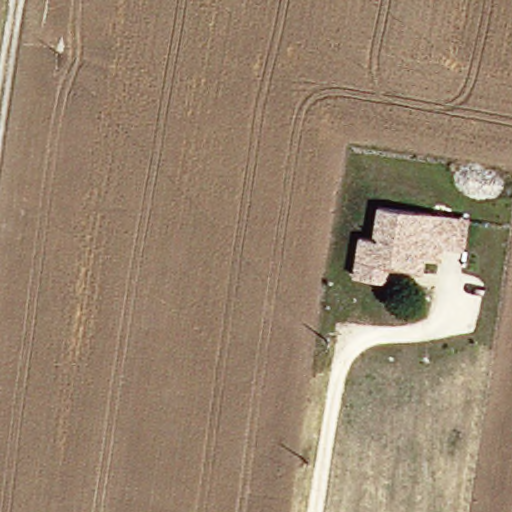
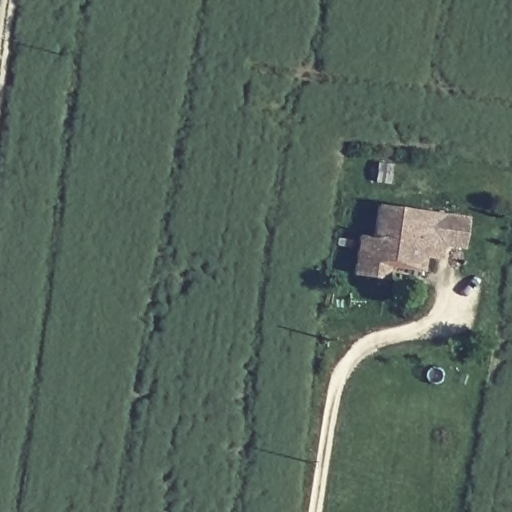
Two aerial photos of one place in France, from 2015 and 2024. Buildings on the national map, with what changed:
unchanged [(418,252),(415,267),(381,261),(379,275),(347,270),(354,230),(367,233),(373,200),(440,212),(455,215),(461,215),(456,245),(451,244),(435,241),(433,255),(418,252)]

